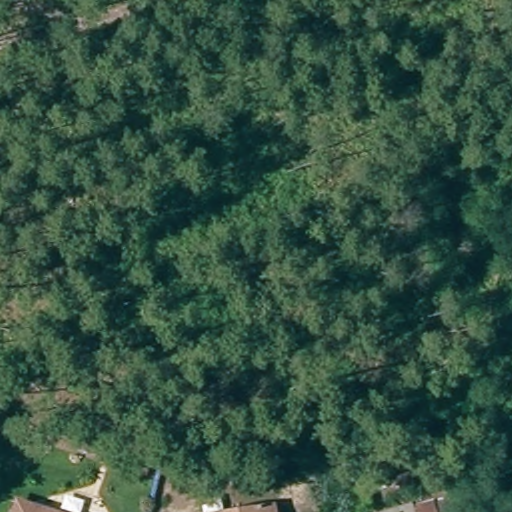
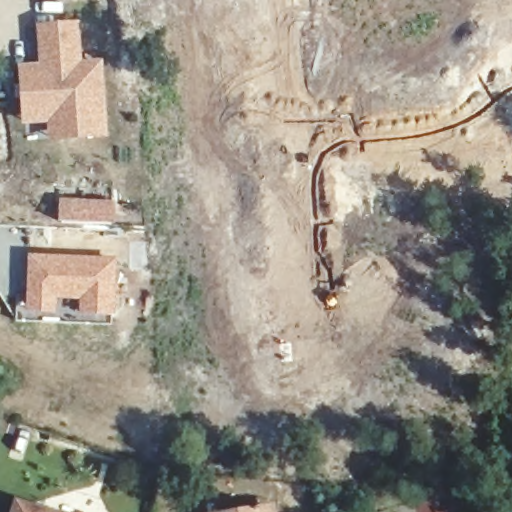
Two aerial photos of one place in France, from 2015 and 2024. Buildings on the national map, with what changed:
new [(25,120),(24,105),(21,69),(44,67),(42,46),(41,26),(76,24),(77,44),(78,64),(99,63),(104,134),(67,136),(52,137),(51,117),(25,120)]
new [(60,222),(61,199),(116,202),(115,225),(60,222)]
new [(57,299),(57,313),(27,312),(29,255),(117,258),(116,316),(98,316),(81,300),(57,299)]
unchanged [(431,502),(432,504),(449,500),(452,512),(389,512),(409,506),(410,509),(431,502)]
unchanged [(16,504),(41,512),(13,512),(16,504)]
unchanged [(270,512),(254,512),(270,510),(270,512)]

